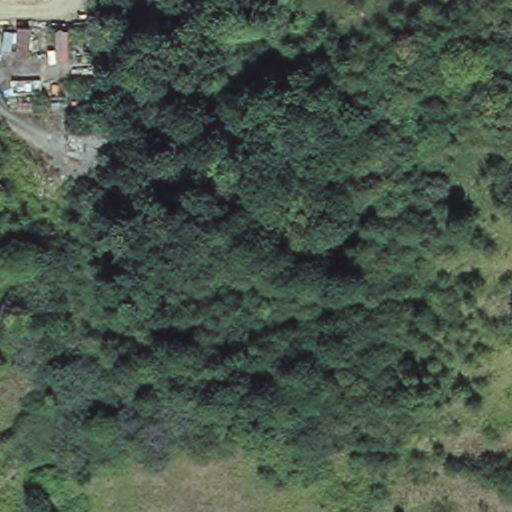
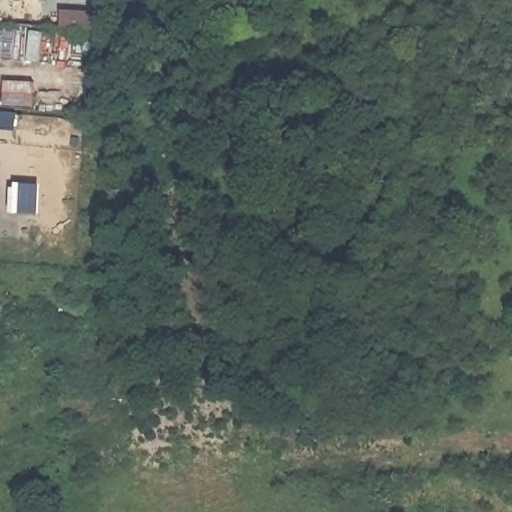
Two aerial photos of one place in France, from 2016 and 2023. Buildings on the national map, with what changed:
unchanged [(229,26),(230,0),(269,0),(268,27),(229,26)]

